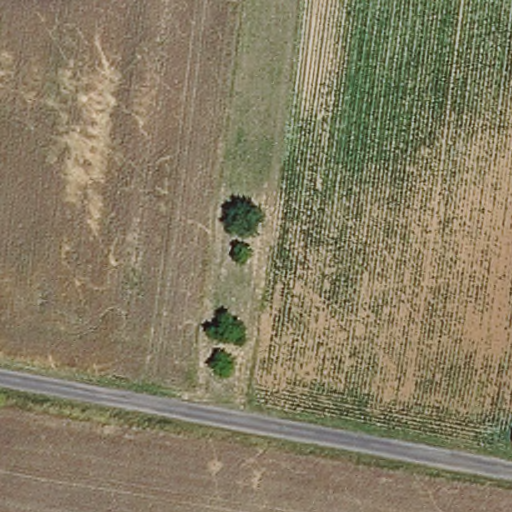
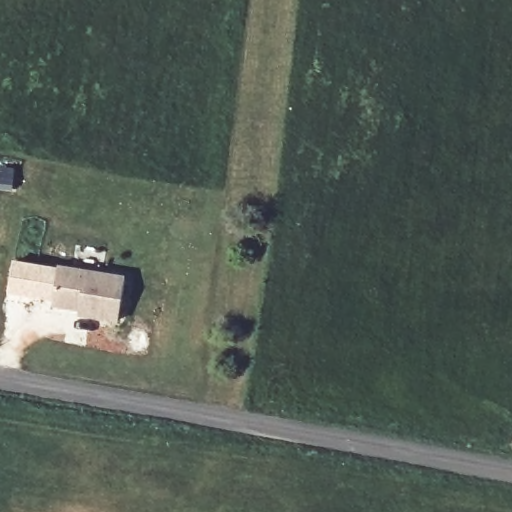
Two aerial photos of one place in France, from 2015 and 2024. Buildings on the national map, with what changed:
new [(125,277),(117,323),(77,315),(77,310),(51,305),(57,266),(125,277)]

